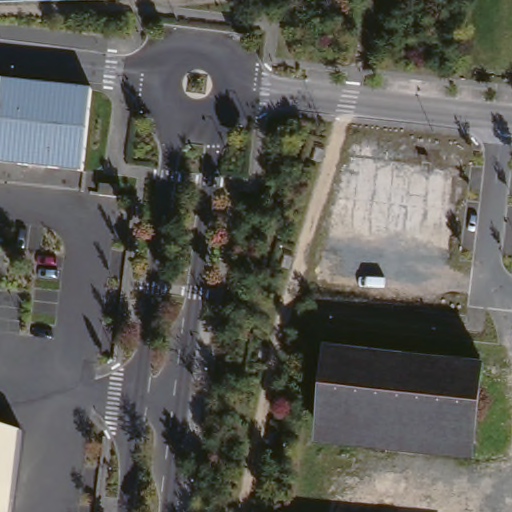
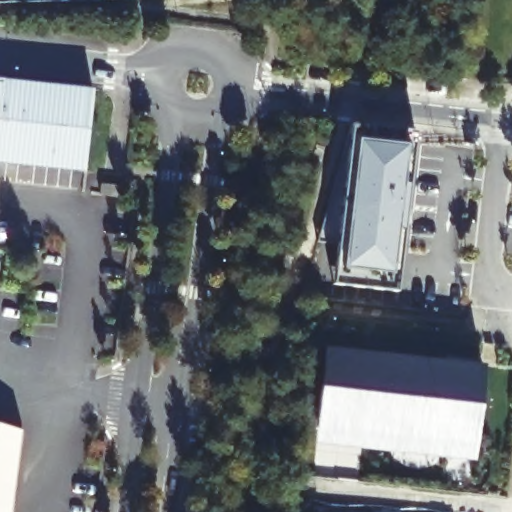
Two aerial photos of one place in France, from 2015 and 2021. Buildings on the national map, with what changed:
unchanged [(88,83),(81,166),(0,158),(0,76),(88,83)]
new [(315,242),(322,215),(348,123),(412,131),(398,252),(395,291),(330,284),(335,244),(315,242)]
unchanged [(473,375),(463,451),(315,431),(326,355),(473,375)]
unchanged [(21,429),(10,512),(0,512),(0,423),(21,429)]

